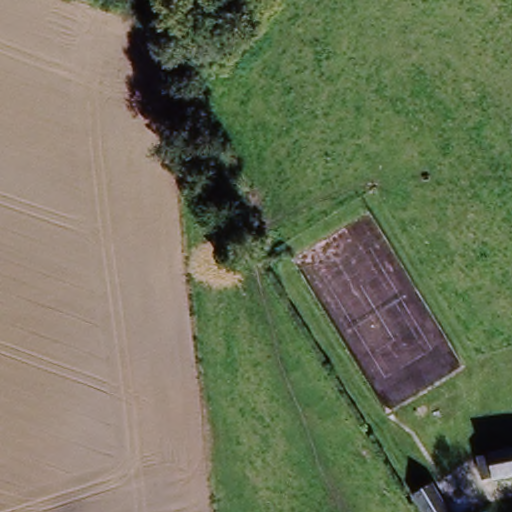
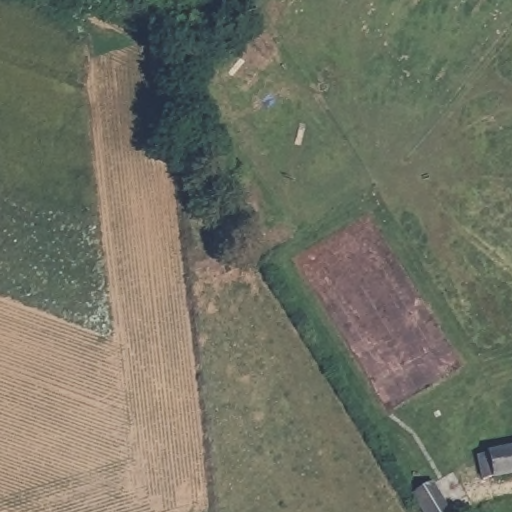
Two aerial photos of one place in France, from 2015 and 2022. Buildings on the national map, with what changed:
unchanged [(512,448),(512,479),(494,482),(493,478),(481,481),(477,459),(488,457),(487,453),(512,448)]
unchanged [(418,512),(414,499),(435,492),(443,512),(418,512)]

